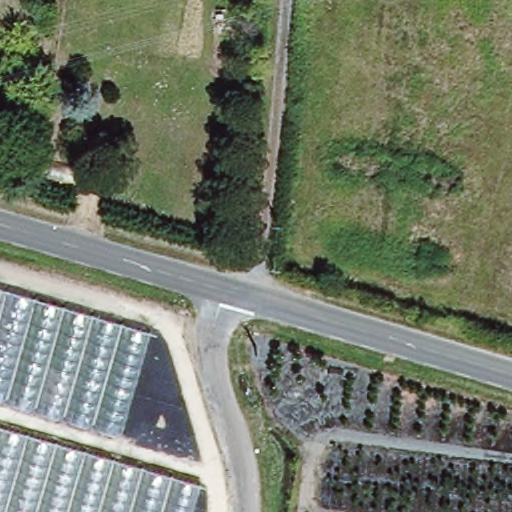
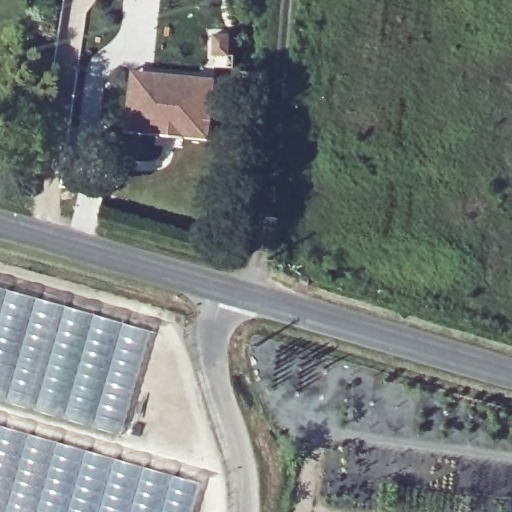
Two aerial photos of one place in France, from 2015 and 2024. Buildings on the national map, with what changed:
new [(127,129),(131,90),(134,69),(154,71),(216,78),(210,137),(182,134),(157,132),(127,129)]
new [(11,126),(32,130),(27,164),(5,160),(11,126)]
unchanged [(120,437),(0,401),(0,288),(150,331),(120,437)]
unchanged [(193,512),(0,512),(0,426),(201,484),(193,512)]

